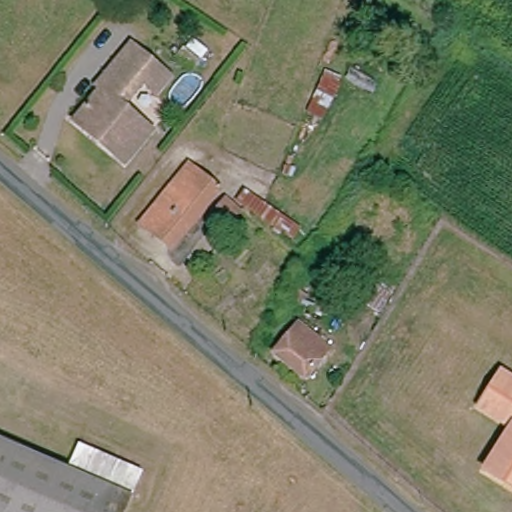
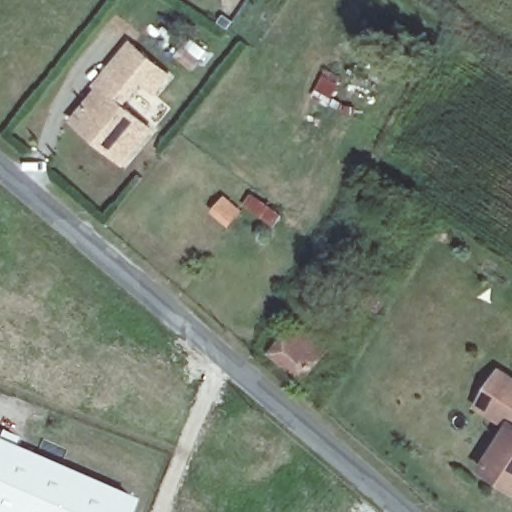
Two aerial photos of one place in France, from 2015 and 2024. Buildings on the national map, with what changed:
unchanged [(78,116),(101,89),(96,85),(131,45),(170,77),(156,92),(142,81),(122,105),(154,131),(125,164),(99,141),(74,121),(78,116)]
demolished [(224,184),(169,254),(136,227),(194,159),(224,184)]
unchanged [(251,222),(241,235),(217,217),(228,199),(235,202),(247,189),(298,221),(283,240),(251,222)]
unchanged [(300,322),(333,353),(310,377),(277,348),(300,322)]
unchanged [(478,405),(505,372),(512,378),(512,494),(477,468),(508,430),(495,417),(478,405)]
unchanged [(73,467),(135,495),(128,512),(0,512),(0,435),(73,467)]
unchanged [(135,495),(73,467),(85,443),(147,471),(135,495)]

